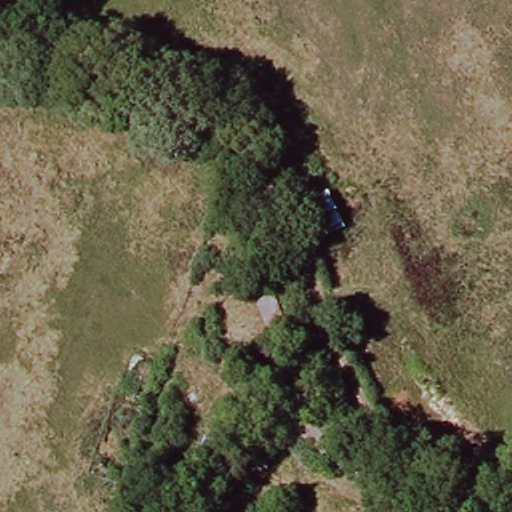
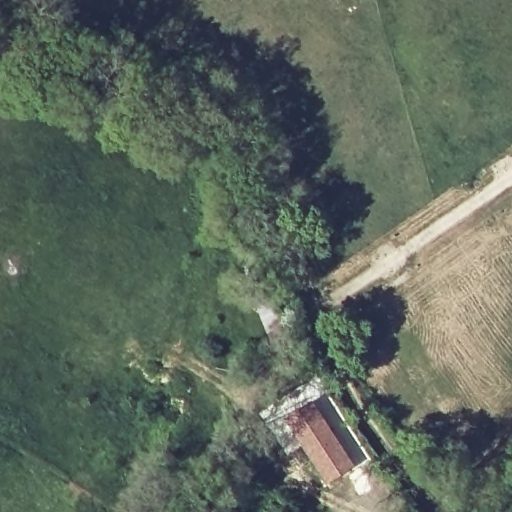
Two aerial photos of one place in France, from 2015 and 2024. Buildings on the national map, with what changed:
unchanged [(293,201),(312,190),(318,200),(326,195),(345,230),(316,249),(293,201)]
new [(312,400),(354,466),(327,481),(285,417),(312,400)]

